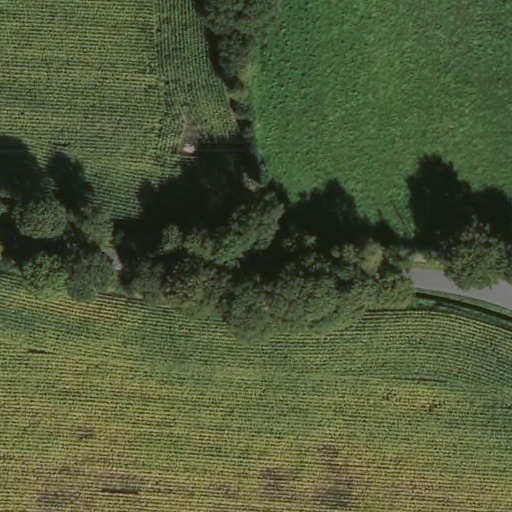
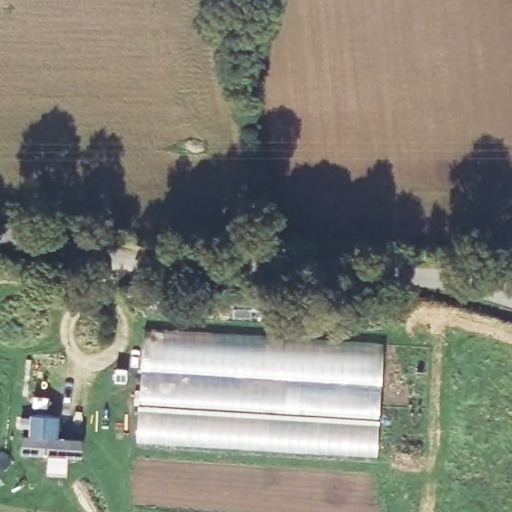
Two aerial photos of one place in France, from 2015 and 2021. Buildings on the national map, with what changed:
new [(383,352),(377,449),(137,435),(144,335),(383,352)]
new [(59,417),(59,438),(83,440),(81,459),(22,454),(23,435),(29,436),(31,416),(59,417)]

